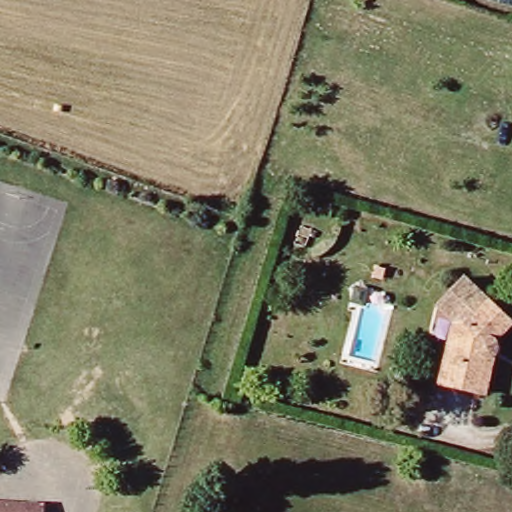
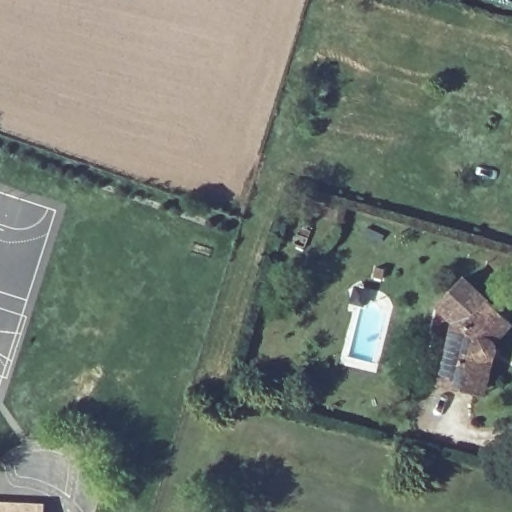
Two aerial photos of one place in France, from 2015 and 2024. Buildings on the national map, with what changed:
unchanged [(483,398),(442,384),(449,358),(460,360),(470,321),(441,287),(462,266),(506,315),(496,330),(503,343),(503,350),(500,357),(494,362),(490,363),(483,398)]
unchanged [(38,512),(0,512),(0,500),(38,500),(38,512)]

